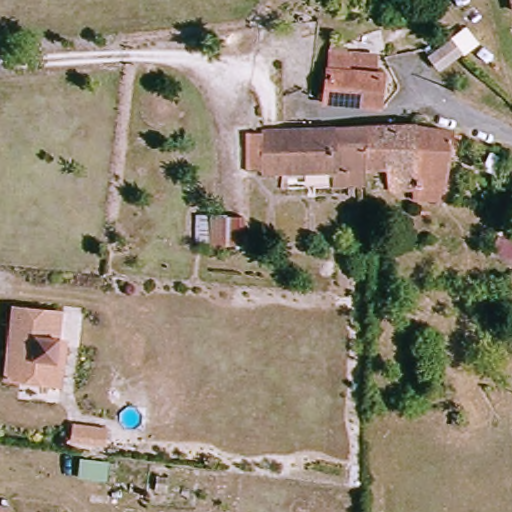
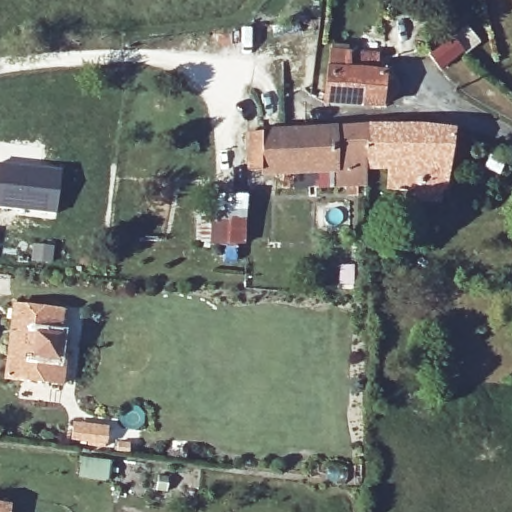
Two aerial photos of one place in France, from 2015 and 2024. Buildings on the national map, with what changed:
unchanged [(512,0),(512,4),(511,0),(512,0)]
unchanged [(317,106),(316,55),(351,60),(378,65),(376,84),(372,116),(317,106)]
unchanged [(362,177),(272,174),(253,174),(255,128),(275,129),(362,135),(362,177)]
unchanged [(362,135),(449,145),(439,204),(383,200),(383,180),(362,177),(362,135)]
new [(57,216),(0,208),(0,162),(63,169),(57,216)]
unchanged [(242,249),(195,246),(196,215),(243,217),(242,249)]
unchanged [(58,383),(2,378),(9,305),(42,308),(57,309),(54,343),(62,343),(58,383)]

